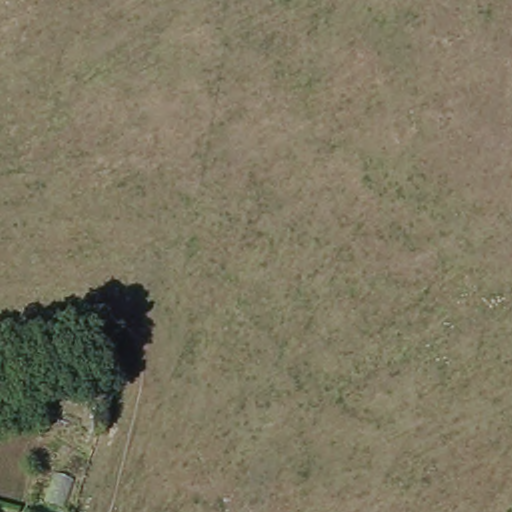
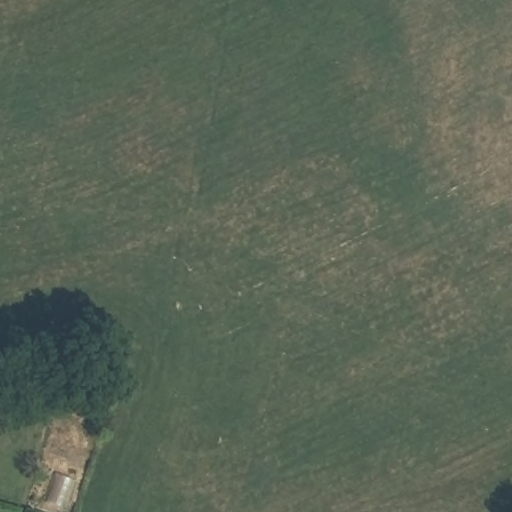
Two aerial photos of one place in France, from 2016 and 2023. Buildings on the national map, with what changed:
[]

